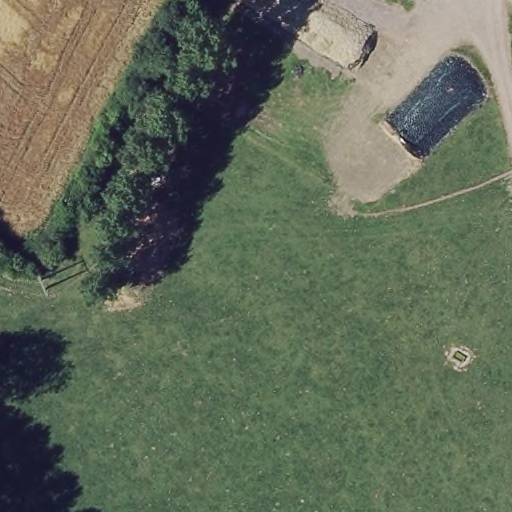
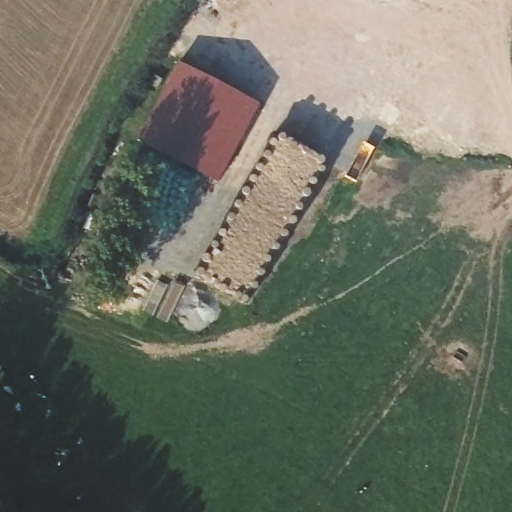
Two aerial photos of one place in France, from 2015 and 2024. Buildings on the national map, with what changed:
new [(178,61),(259,104),(217,183),(137,140),(178,61)]

